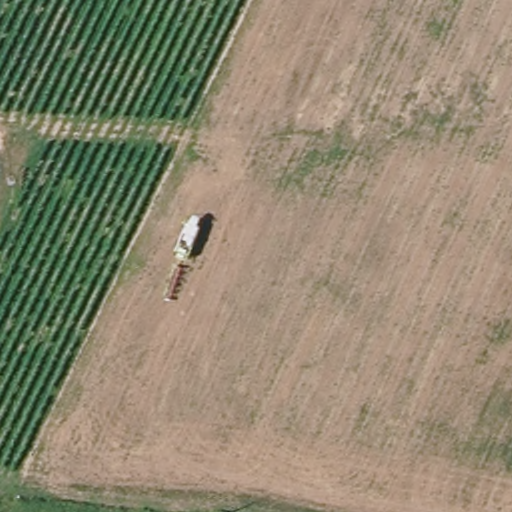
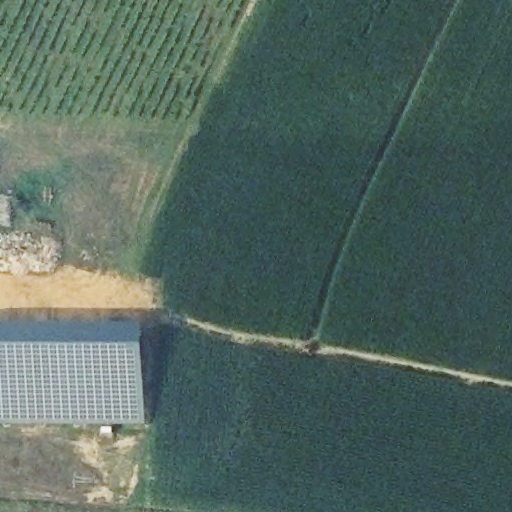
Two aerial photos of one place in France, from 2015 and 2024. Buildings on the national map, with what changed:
new [(0,427),(0,325),(150,324),(148,427),(0,427)]

